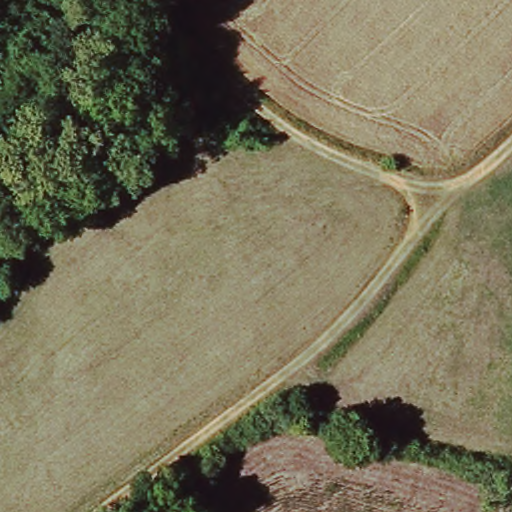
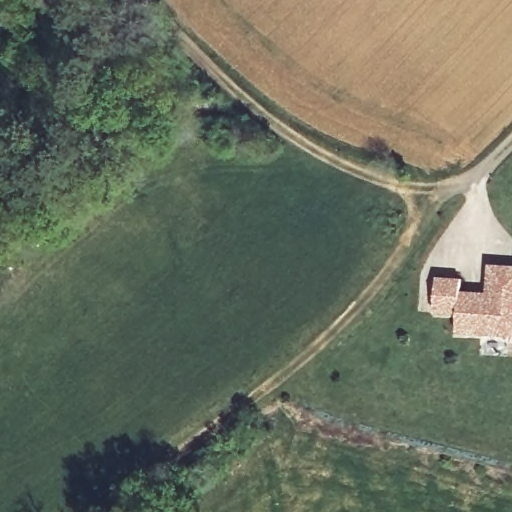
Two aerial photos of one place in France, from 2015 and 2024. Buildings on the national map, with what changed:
new [(459,314),(437,313),(439,277),(464,278),(464,289),(489,290),(489,265),(512,267),(512,339),(459,336),(459,314)]

